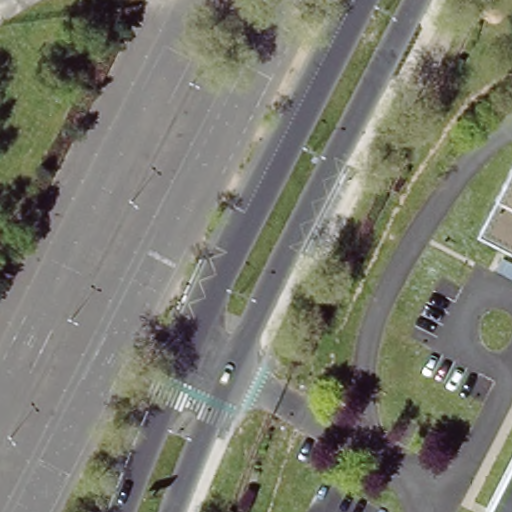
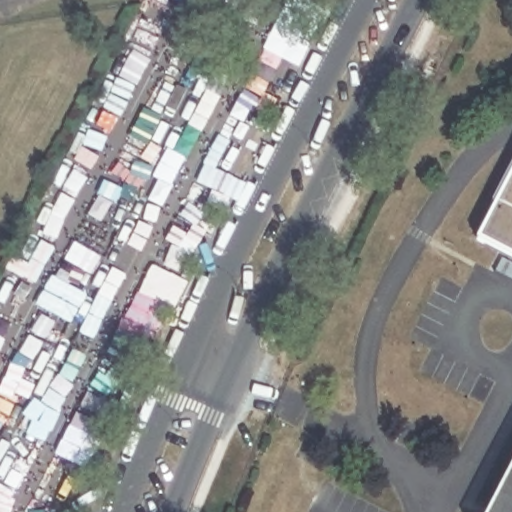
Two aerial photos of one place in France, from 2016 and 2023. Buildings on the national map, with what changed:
unchanged [(512,169),(512,252),(477,235),(512,169)]
unchanged [(512,512),(482,512),(512,455),(512,512)]

